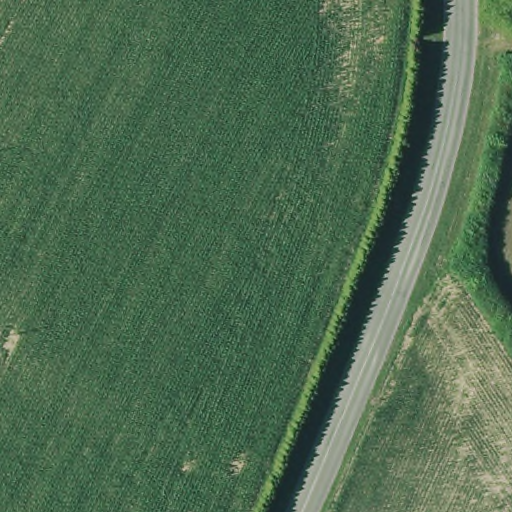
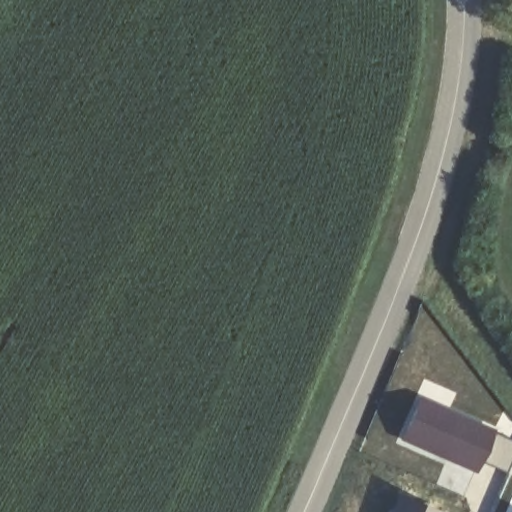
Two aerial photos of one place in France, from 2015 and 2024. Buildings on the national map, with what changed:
new [(482,461),(477,473),(399,437),(418,392),(497,428),(496,431),(512,439),(512,457),(506,472),(482,461)]
new [(443,512),(389,512),(399,490),(443,512)]

